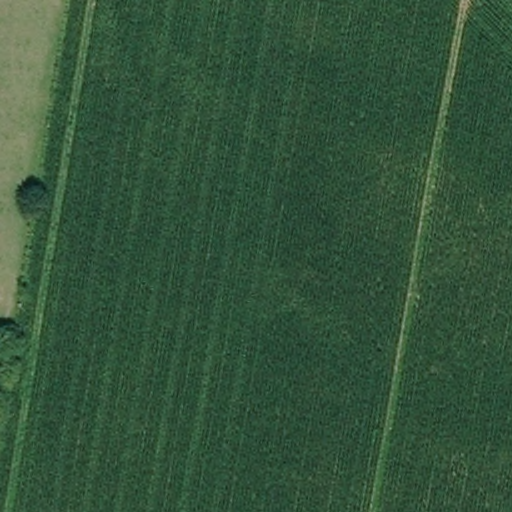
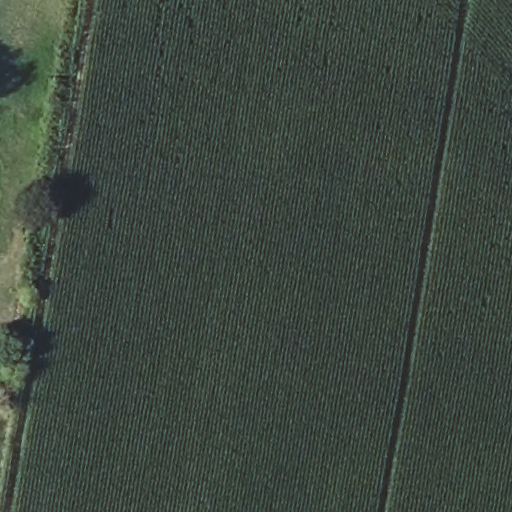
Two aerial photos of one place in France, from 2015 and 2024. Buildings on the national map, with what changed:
[]

